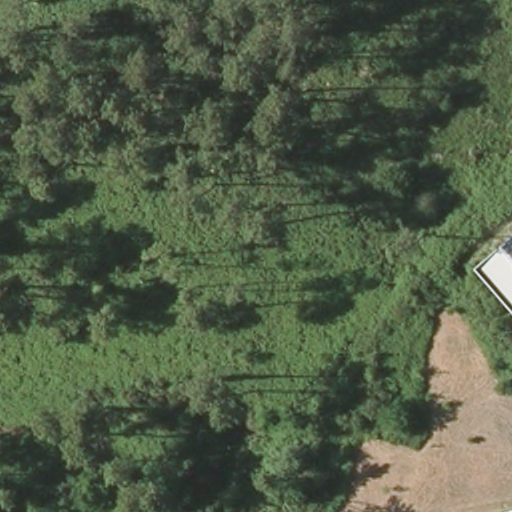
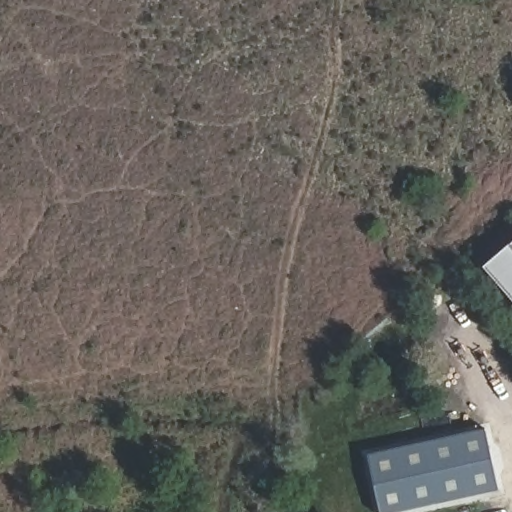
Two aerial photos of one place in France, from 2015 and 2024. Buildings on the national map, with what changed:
unchanged [(512,244),(512,298),(485,267),(512,244)]
new [(485,431),(498,490),(397,512),(381,512),(369,456),(485,431)]

